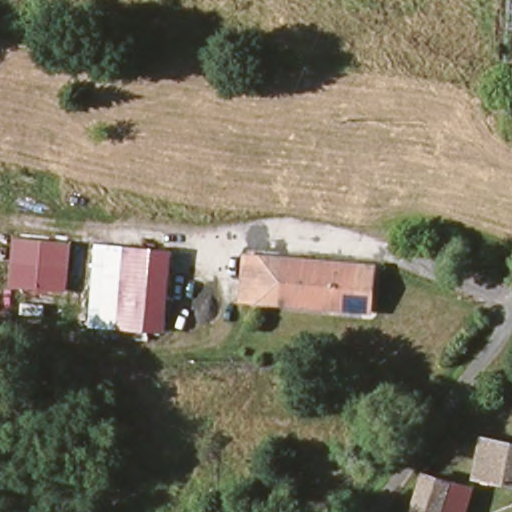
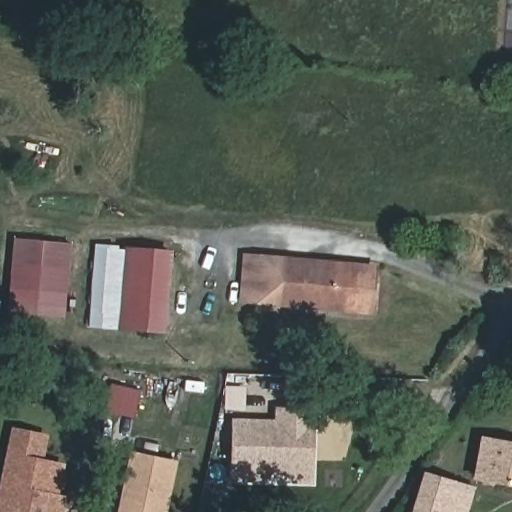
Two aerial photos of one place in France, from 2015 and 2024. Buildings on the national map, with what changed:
demolished [(506,115),(512,116),(512,147),(503,146),(506,115)]
unchanged [(18,235),(71,240),(69,295),(14,291),(18,235)]
new [(126,300),(124,327),(123,331),(89,327),(97,244),(130,245),(129,251),(126,300)]
unchanged [(129,251),(166,255),(163,301),(126,300),(129,251)]
unchanged [(378,264),(374,315),(240,302),(242,256),(378,264)]
new [(66,316),(9,313),(10,291),(14,291),(66,295),(66,316)]
unchanged [(163,301),(161,330),(124,327),(126,300),(163,301)]
new [(113,383),(143,390),(137,416),(107,410),(113,383)]
new [(276,407),(318,406),(316,482),(232,485),(232,419),(275,419),(276,407)]
new [(64,512),(0,512),(0,485),(13,426),(50,433),(45,460),(66,462),(59,495),(68,495),(64,512)]
unchanged [(512,489),(478,481),(488,438),(512,443),(512,489)]
new [(164,512),(121,512),(133,455),(174,463),(164,512)]
unchanged [(428,475),(455,483),(446,512),(417,512),(428,475)]
unchanged [(455,483),(474,490),(467,512),(446,512),(455,483)]

